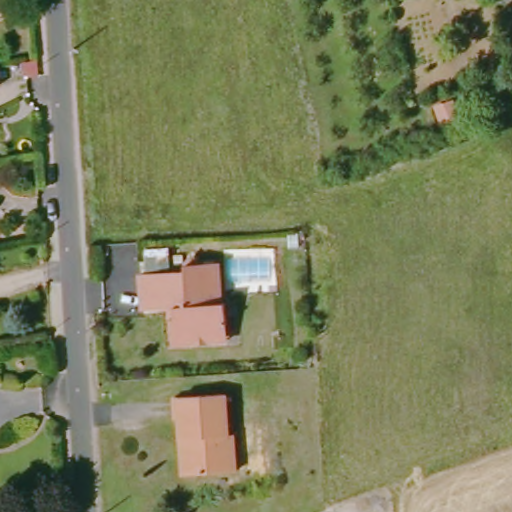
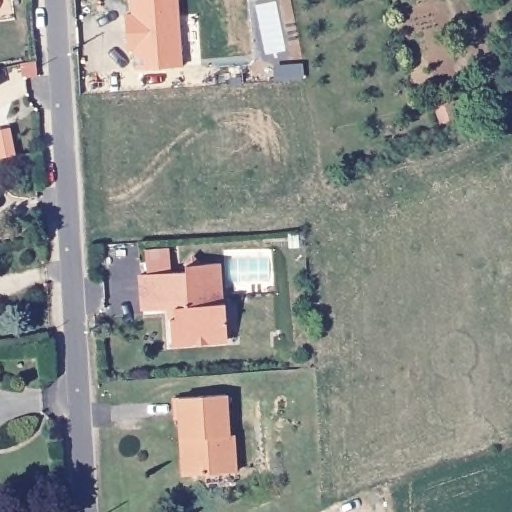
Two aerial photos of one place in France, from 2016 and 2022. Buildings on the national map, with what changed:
new [(181,66),(136,70),(135,48),(127,49),(125,30),(125,15),(132,15),(131,0),(177,0),(181,66)]
unchanged [(434,109),(452,102),(456,115),(439,122),(434,109)]
unchanged [(301,225),(301,246),(289,245),(289,226),(301,225)]
unchanged [(203,343),(182,345),(182,340),(165,340),(164,319),(170,319),(170,309),(135,311),(132,278),(176,275),(177,268),(179,262),(187,256),(200,263),(212,264),(214,303),(220,303),(221,324),(222,341),(203,343)]
unchanged [(175,447),(175,423),(167,423),(166,401),(221,399),(224,440),(231,440),(232,472),(188,474),(177,475),(175,447)]

